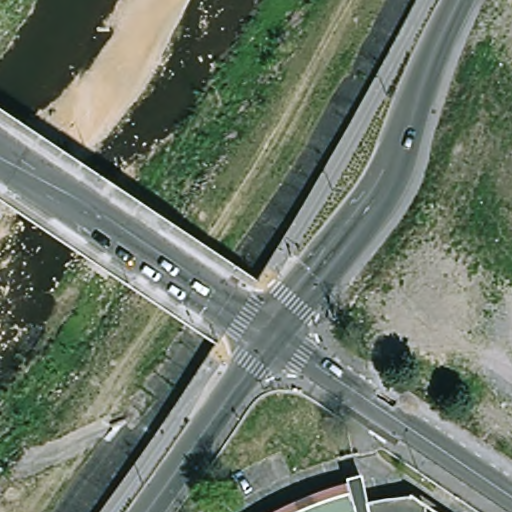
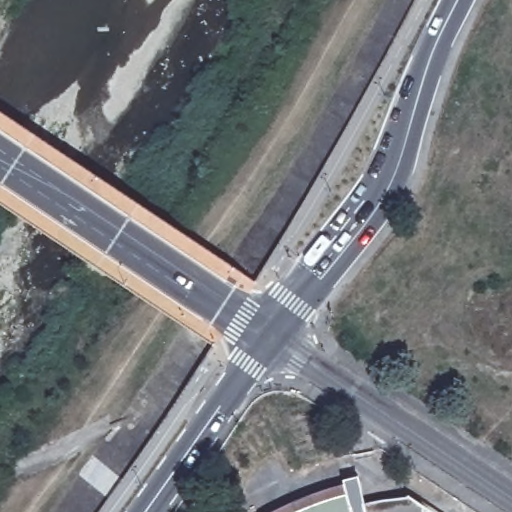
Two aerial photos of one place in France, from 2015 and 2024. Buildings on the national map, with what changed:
unchanged [(345,493),(359,489),(364,504),(365,512),(333,512),(349,505),(345,493)]
unchanged [(402,499),(405,496),(424,508),(424,512),(365,512),(364,504),(402,499)]
unchanged [(303,507),(305,512),(293,512),(296,510),(303,507)]

